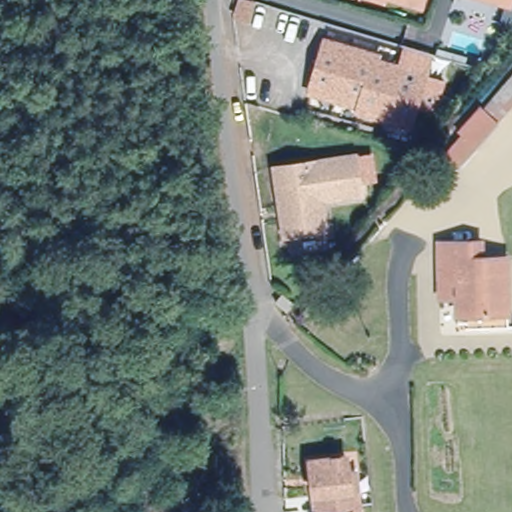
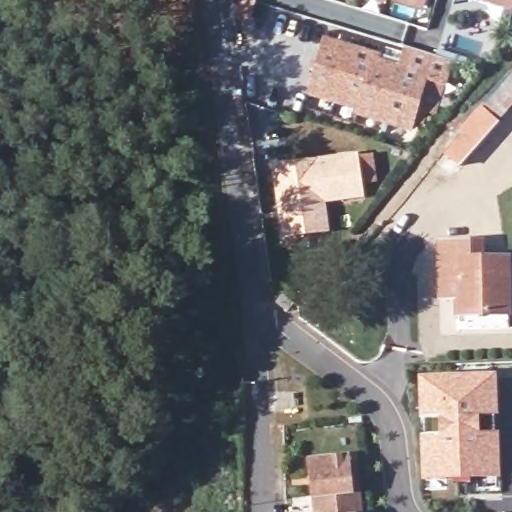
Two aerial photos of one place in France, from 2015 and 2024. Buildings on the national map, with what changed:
unchanged [(255,2),(251,18),(239,14),(243,0),(247,0),(255,2)]
unchanged [(355,0),(419,0),(415,11),(380,0),(377,6),(355,0)]
unchanged [(485,0),(512,0),(512,1),(510,7),(485,0)]
unchanged [(430,60),(424,82),(443,88),(435,114),(416,108),(410,132),(358,117),(360,112),(310,98),(325,45),(375,60),(373,65),(396,72),(402,51),(430,60)]
unchanged [(467,127),(463,123),(485,99),(488,102),(500,89),(509,78),(512,81),(512,101),(463,158),(450,147),(467,127)]
unchanged [(356,155),(361,195),(322,200),(326,230),(284,236),(275,167),(356,155)]
unchanged [(449,239),(468,238),(468,255),(512,254),(512,309),(468,309),(468,294),(450,295),(450,279),(449,239)]
unchanged [(293,304),(287,312),(275,303),(282,295),(293,304)]
new [(496,372),(498,418),(483,419),(483,430),(499,430),(501,491),(473,493),(473,481),(420,481),(418,433),(421,433),(417,374),(496,372)]
unchanged [(347,468),(348,483),(354,482),(355,499),(357,512),(315,512),(311,472),(347,468)]

